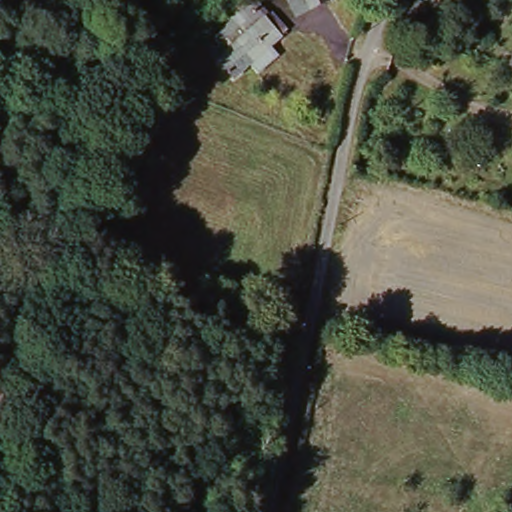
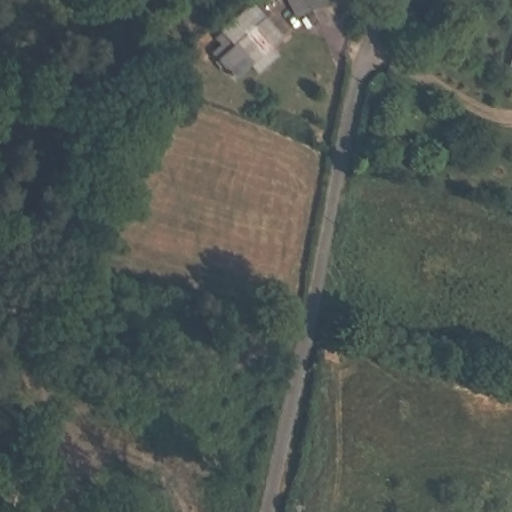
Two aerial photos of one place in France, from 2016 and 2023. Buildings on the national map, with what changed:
unchanged [(331,0),(333,4),(295,20),(286,0),(331,0)]
unchanged [(252,2),(283,41),(233,85),(211,56),(220,48),(211,37),(252,2)]
unchanged [(512,65),(508,64),(512,54),(512,65)]

